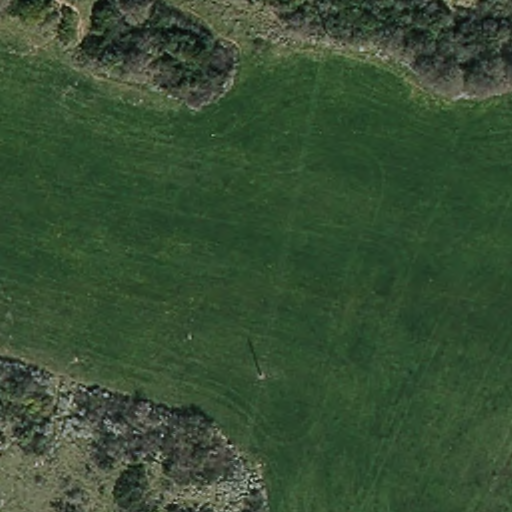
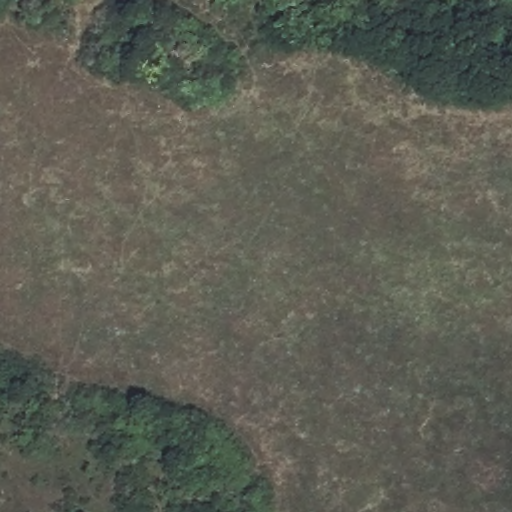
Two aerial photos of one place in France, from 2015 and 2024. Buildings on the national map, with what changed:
[]

